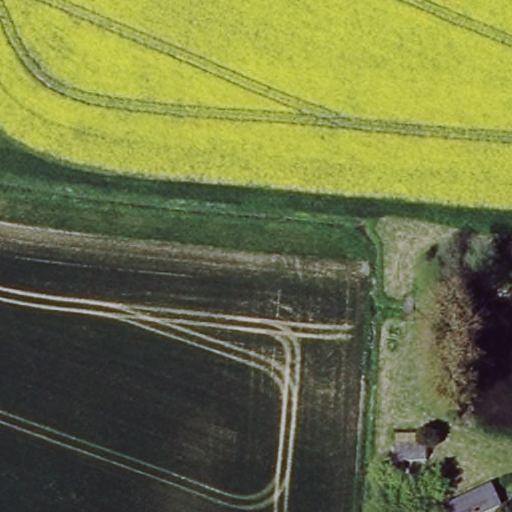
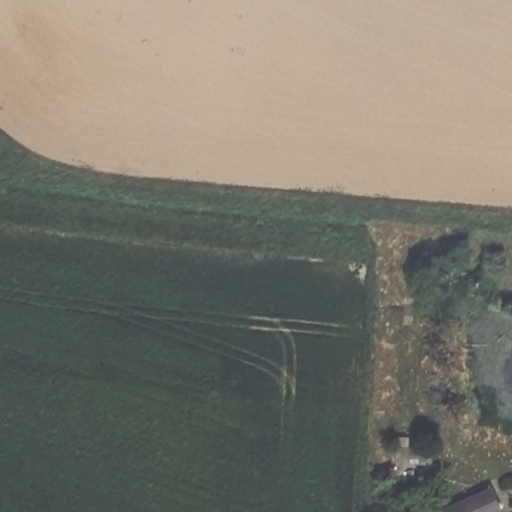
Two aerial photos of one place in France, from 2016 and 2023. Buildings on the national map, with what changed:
unchanged [(417,472),(389,471),(390,455),(417,455),(417,472)]
unchanged [(446,507),(490,488),(499,509),(492,512),(448,512),(446,507)]

